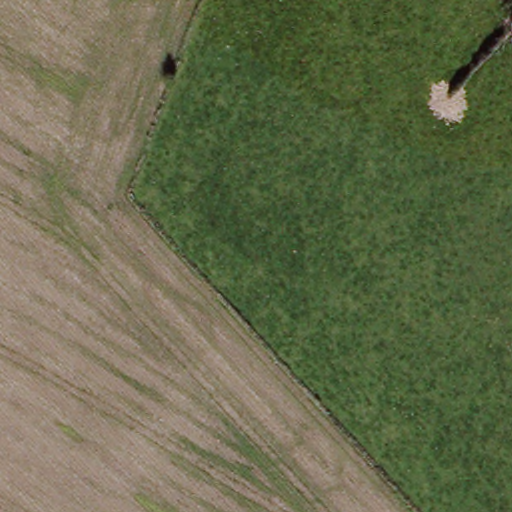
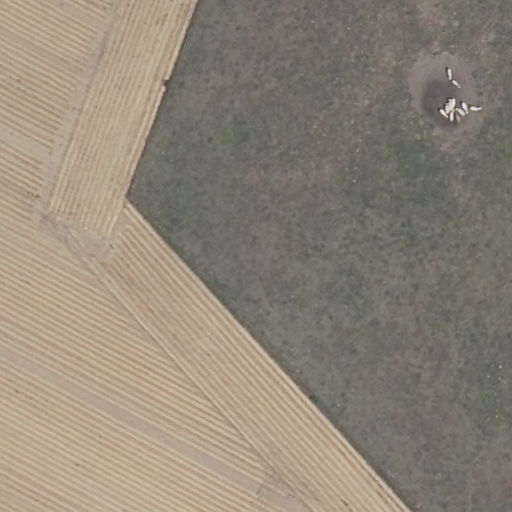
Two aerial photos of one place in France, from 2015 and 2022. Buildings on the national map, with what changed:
[]

